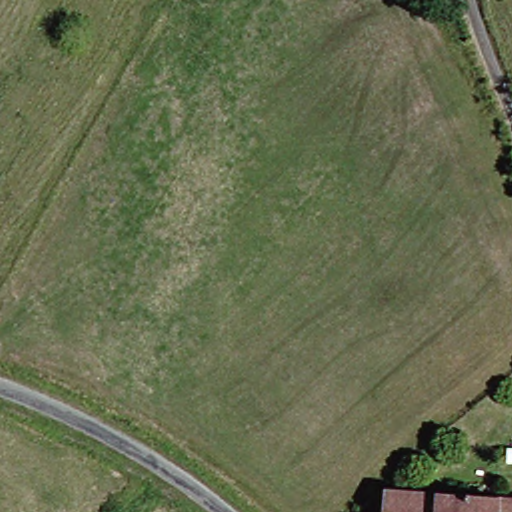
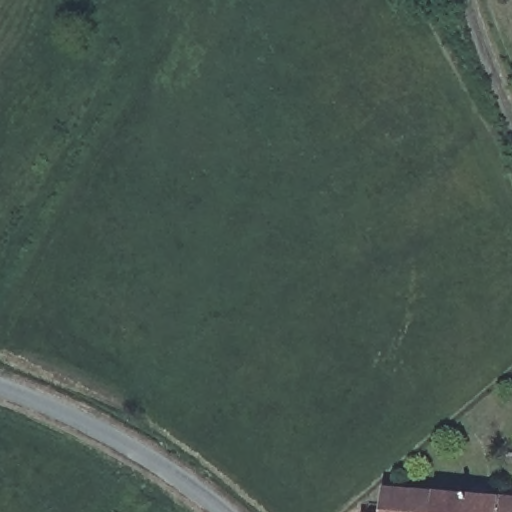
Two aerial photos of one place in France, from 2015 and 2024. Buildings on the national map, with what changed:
unchanged [(380,493),(512,501),(512,512),(378,512),(380,493)]

